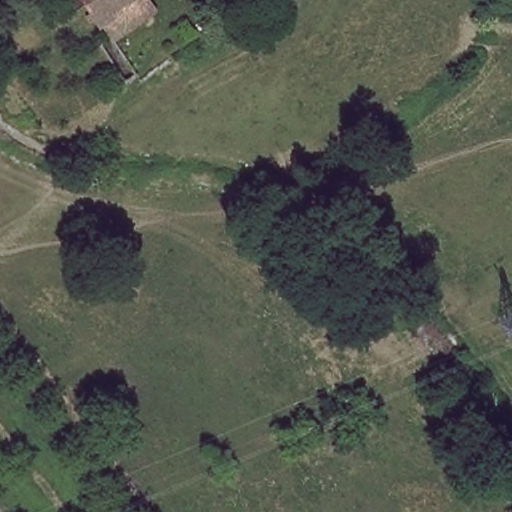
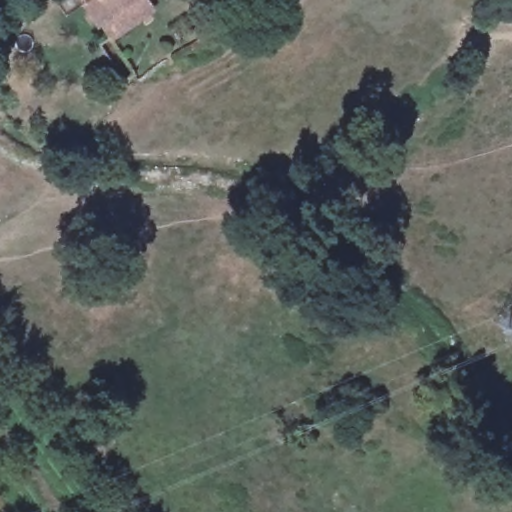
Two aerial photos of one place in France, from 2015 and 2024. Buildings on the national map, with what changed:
unchanged [(84,31),(65,0),(133,0),(84,31)]

